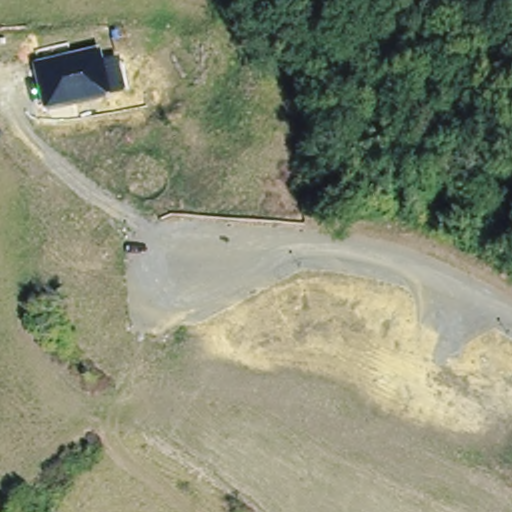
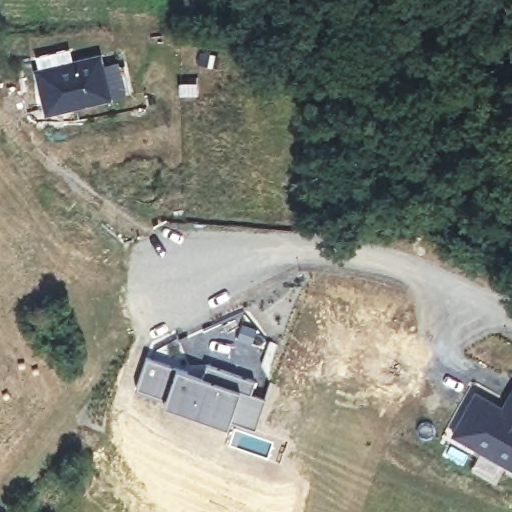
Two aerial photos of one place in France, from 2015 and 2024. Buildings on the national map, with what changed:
unchanged [(124,94),(111,99),(44,114),(33,69),(99,53),(102,64),(117,61),(124,94)]
new [(175,367),(202,376),(208,364),(253,380),(249,392),(263,398),(253,427),(226,424),(162,401),(165,394),(136,384),(146,357),(175,367)]
new [(502,404),(512,384),(512,468),(450,433),(474,389),(502,404)]

